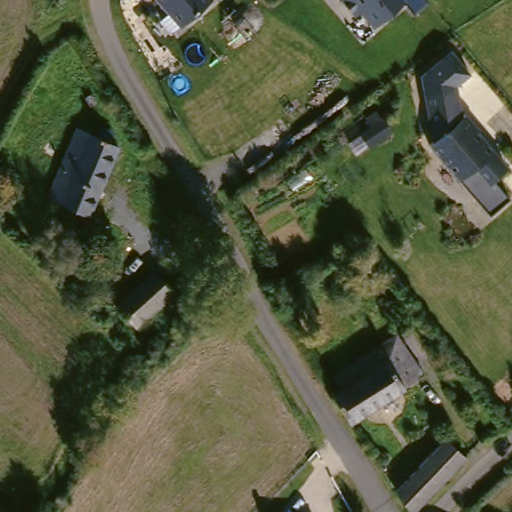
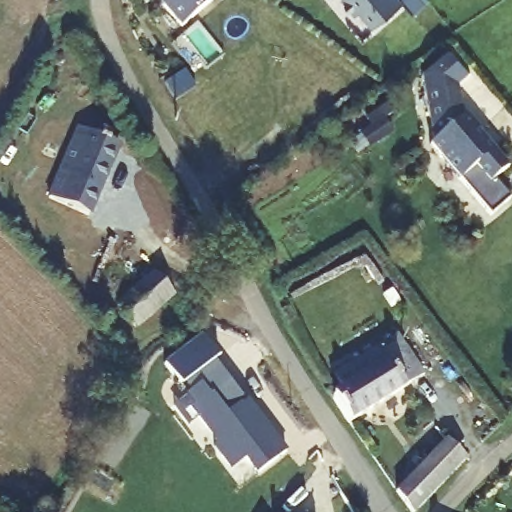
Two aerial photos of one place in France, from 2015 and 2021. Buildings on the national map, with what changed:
unchanged [(160,0),(211,0),(182,25),(160,0)]
unchanged [(357,16),(344,2),(346,0),(425,0),(428,3),(415,13),(406,3),(374,27),(363,12),(357,16)]
unchanged [(488,181),(474,165),(459,177),(442,157),(435,157),(425,145),(429,142),(420,87),(453,82),(459,117),(464,113),(477,129),(473,132),(488,151),(492,147),(507,165),(488,181)]
unchanged [(83,132),(124,152),(94,221),(53,203),(83,132)]
unchanged [(155,272),(174,294),(136,327),(116,306),(155,272)]
unchanged [(424,375),(389,397),(349,422),(333,396),(343,390),(333,374),(397,336),(424,375)]
new [(213,356),(244,395),(238,400),(222,381),(208,393),(198,382),(182,395),(176,387),(213,356)]
new [(182,395),(198,382),(208,393),(222,381),(238,400),(244,395),(286,446),(259,468),(247,453),(233,465),(214,442),(218,438),(198,414),(189,422),(173,402),(182,395)]
unchanged [(447,440),(466,458),(414,512),(412,512),(397,491),(447,440)]

